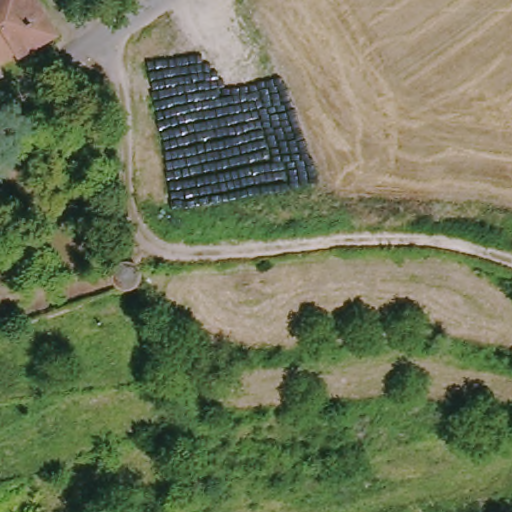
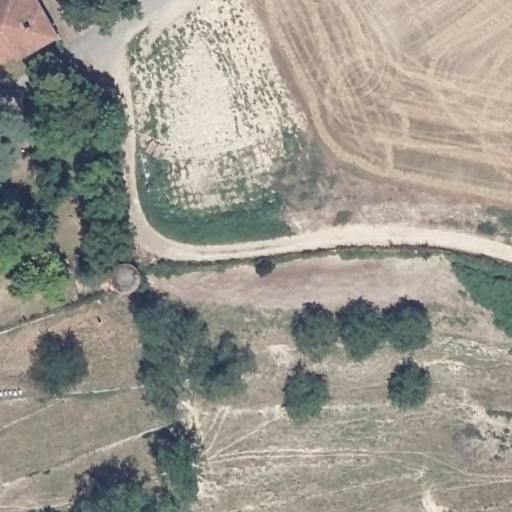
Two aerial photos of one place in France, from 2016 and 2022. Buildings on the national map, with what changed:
unchanged [(61,44),(25,62),(23,58),(0,15),(0,0),(44,0),(60,37),(61,44)]
unchanged [(0,70),(0,15),(23,58),(0,70)]
unchanged [(146,272),(141,281),(133,284),(126,282),(120,277),(119,272),(121,263),(127,258),(137,257),(144,264),(146,272)]

